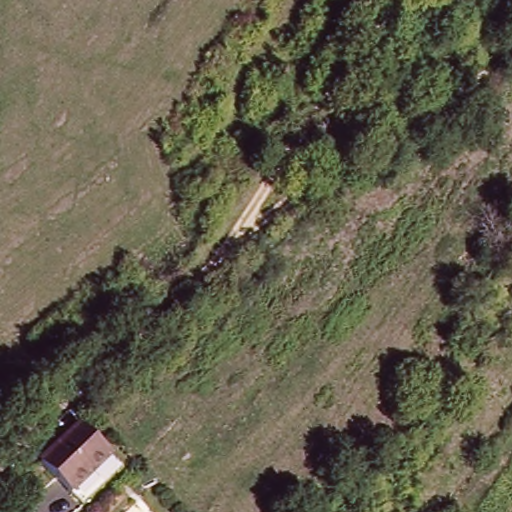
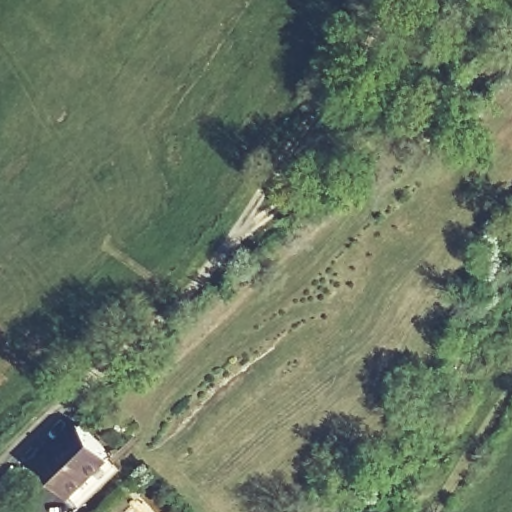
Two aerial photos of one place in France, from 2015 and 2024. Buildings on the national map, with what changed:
unchanged [(87,504),(79,496),(45,461),(83,423),(117,458),(125,466),(87,504)]

